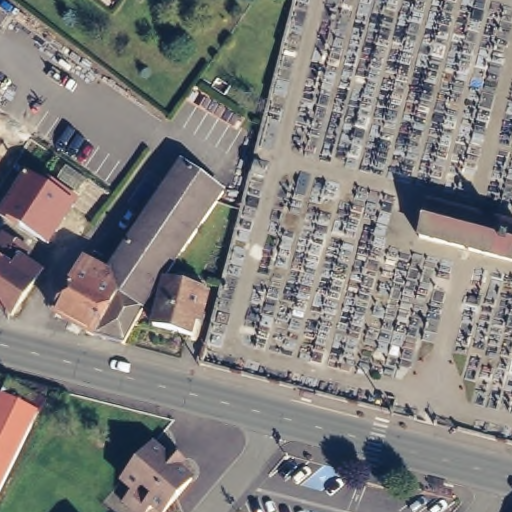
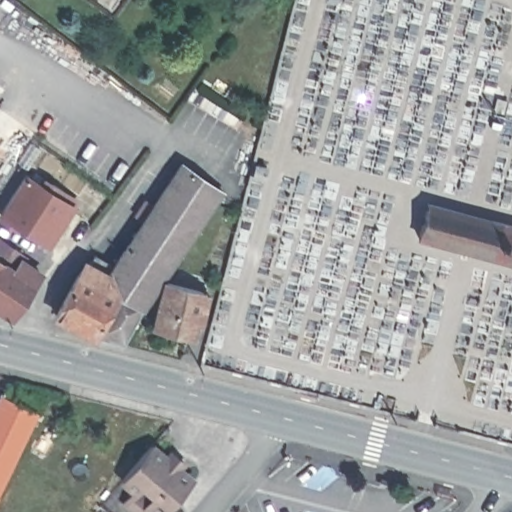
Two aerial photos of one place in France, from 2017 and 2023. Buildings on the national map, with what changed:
unchanged [(107,338),(60,315),(82,275),(83,275),(90,267),(105,276),(182,160),(226,193),(145,311),(128,345),(107,338)]
unchanged [(0,303),(0,239),(11,221),(1,214),(27,176),(75,207),(50,244),(42,238),(27,258),(47,272),(18,315),(0,303)]
unchanged [(427,206),(512,227),(512,263),(418,240),(427,206)]
unchanged [(160,325),(170,283),(207,291),(213,293),(205,324),(199,322),(196,335),(160,325)]
unchanged [(13,383),(46,403),(0,501),(0,409),(13,383)]
unchanged [(155,442),(169,452),(173,448),(188,460),(182,468),(195,477),(165,511),(156,505),(148,512),(138,512),(126,501),(137,488),(127,476),(155,442)]
unchanged [(388,481),(385,492),(382,492),(380,496),(360,490),(361,488),(360,485),(362,475),(388,481)]

